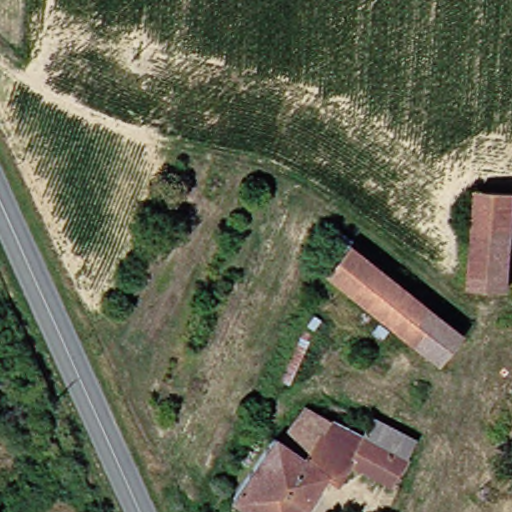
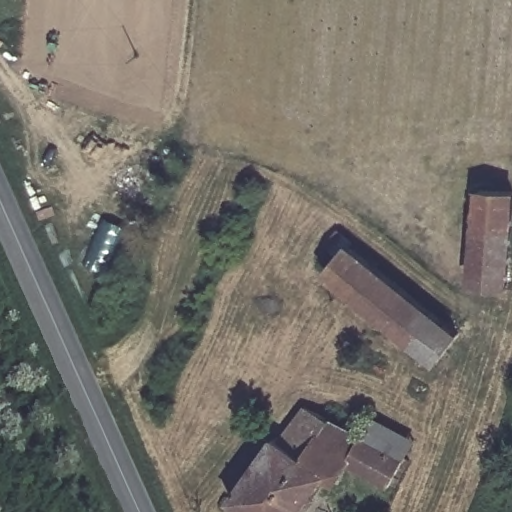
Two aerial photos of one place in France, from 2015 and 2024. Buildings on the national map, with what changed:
unchanged [(509,285),(472,283),(478,189),(512,192),(512,235),(509,285)]
unchanged [(353,237),(356,234),(460,333),(431,363),(330,266),(344,251),(331,239),(342,227),(353,237)]
unchanged [(306,404),(355,443),(365,426),(409,454),(391,482),(349,462),(334,482),(326,476),(329,472),(278,440),(306,404)]
unchanged [(299,512),(251,512),(230,499),(275,438),(278,440),(329,472),(326,476),(299,512)]

